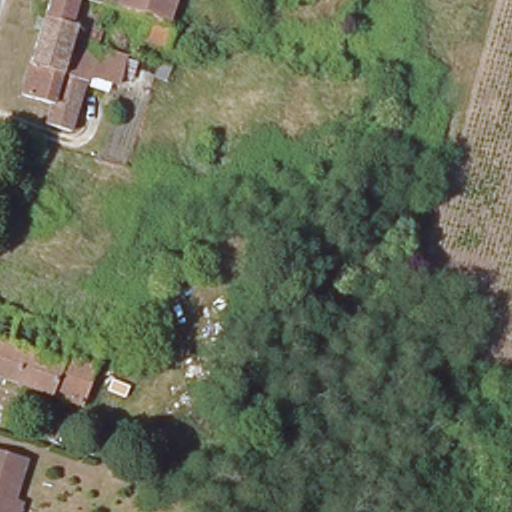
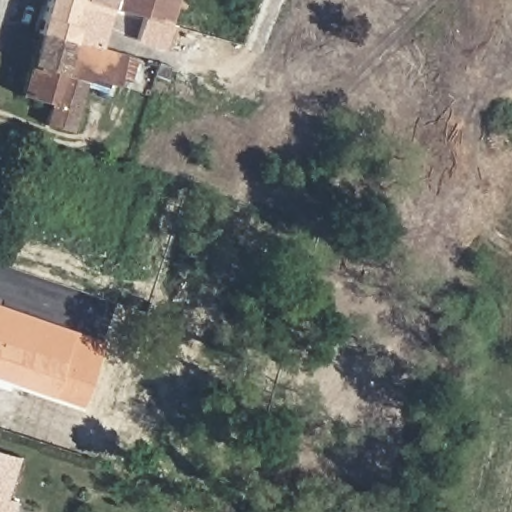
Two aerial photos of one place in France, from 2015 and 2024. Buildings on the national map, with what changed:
unchanged [(105,12),(98,37),(92,35),(90,51),(66,45),(36,37),(40,25),(46,0),(62,0),(70,2),(105,12)]
unchanged [(140,43),(141,37),(145,23),(125,17),(121,16),(118,15),(105,12),(70,2),(62,0),(174,0),(165,29),(170,30),(165,47),(165,50),(140,43)]
unchanged [(66,45),(49,111),(19,101),(36,37),(66,45)]
unchanged [(90,51),(94,52),(123,61),(114,89),(90,81),(89,88),(84,86),(67,136),(44,129),(49,111),(66,45),(90,51)]
new [(94,372),(90,370),(60,359),(59,364),(0,344),(0,306),(104,341),(94,372)]
unchanged [(0,344),(59,364),(60,359),(90,370),(78,408),(0,383),(0,344)]
unchanged [(15,504),(13,512),(0,512),(0,456),(20,462),(9,501),(15,504)]

